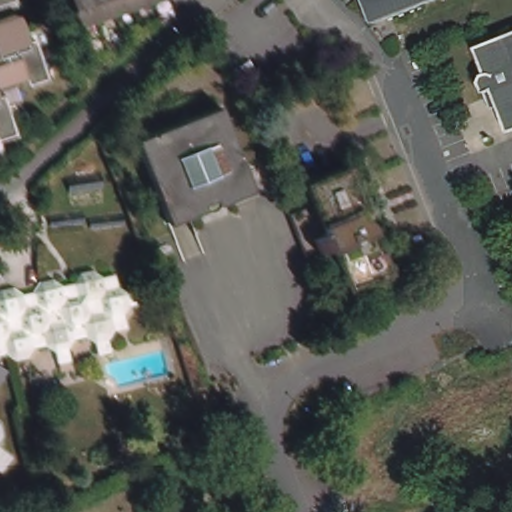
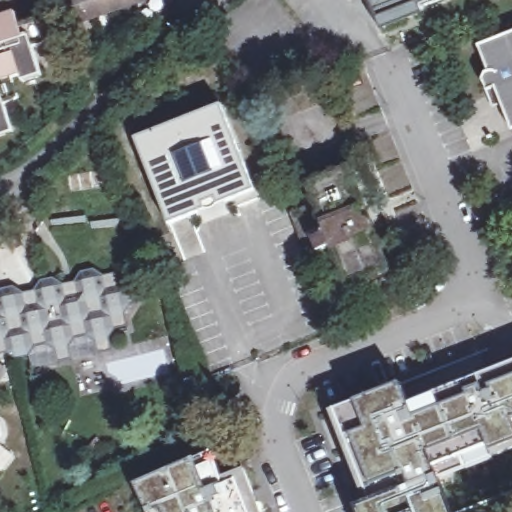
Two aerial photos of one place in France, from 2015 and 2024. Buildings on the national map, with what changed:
unchanged [(11,1),(0,5),(0,0),(14,0),(11,1)]
unchanged [(76,22),(68,0),(140,0),(76,22)]
unchanged [(379,25),(369,0),(442,0),(379,25)]
unchanged [(0,20),(20,14),(25,27),(48,20),(54,42),(38,48),(45,70),(47,76),(29,82),(27,76),(18,79),(24,99),(9,104),(16,126),(19,132),(0,139),(0,137),(0,20)]
unchanged [(481,49),(512,34),(512,129),(481,49)]
unchanged [(171,228),(156,191),(150,177),(136,144),(211,112),(218,110),(228,131),(253,194),(225,205),(199,216),(171,228)]
unchanged [(312,206),(303,185),(348,166),(365,210),(358,211),(361,220),(366,221),(371,225),(392,277),(346,295),(329,250),(306,258),(289,215),(312,206)]
unchanged [(0,358),(0,300),(4,291),(18,289),(27,296),(38,293),(44,283),(58,280),(67,287),(79,285),(84,274),(98,271),(106,277),(121,275),(124,289),(131,293),(144,291),(148,305),(136,308),(129,317),(133,328),(121,331),(113,340),(116,353),(103,356),(99,344),(91,338),(78,341),(74,350),(76,361),(63,365),(60,352),(50,346),(39,349),(33,360),(23,362),(20,362),(11,355),(0,358)]
new [(356,401),(401,383),(409,404),(512,363),(512,450),(489,458),(465,467),(438,477),(452,512),(350,512),(349,508),(354,507),(364,503),(329,412),(336,410),(356,401)]
demolished [(424,400),(512,365),(512,471),(489,480),(467,426),(439,436),(424,400)]
demolished [(411,447),(435,512),(380,512),(348,431),(424,400),(439,436),(411,447)]
unchanged [(8,438),(2,447),(4,460),(0,461),(0,422),(6,426),(8,438)]
new [(224,478),(240,512),(152,512),(139,485),(214,452),(224,478)]

